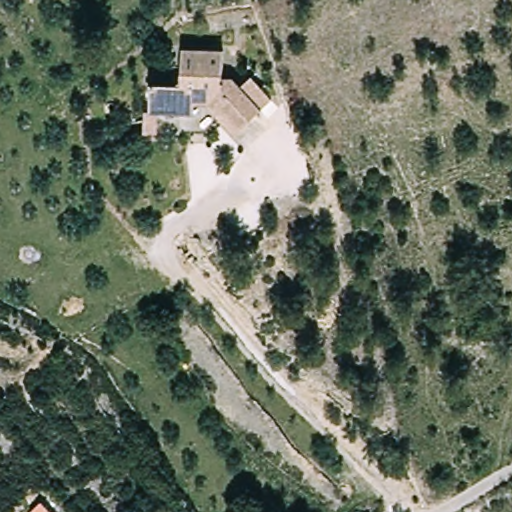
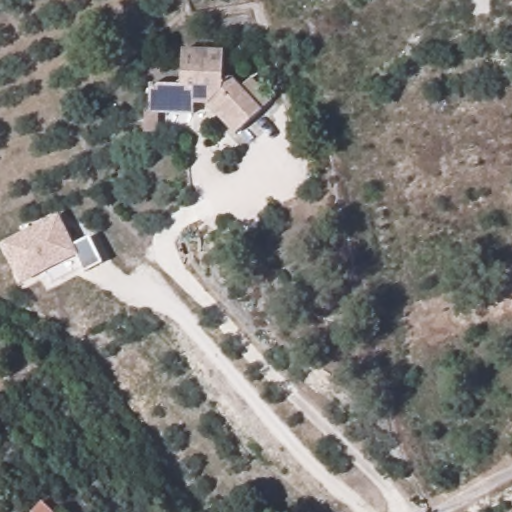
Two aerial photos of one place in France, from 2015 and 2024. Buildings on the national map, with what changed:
new [(512,8),(465,14),(464,0),(512,0),(512,8)]
unchanged [(233,82),(263,112),(237,137),(207,107),(195,107),(195,119),(151,118),(152,88),(184,89),(185,52),(225,53),(224,82),(233,82)]
new [(242,86),(250,78),(271,100),(263,107),(242,86)]
new [(59,215),(72,244),(88,236),(101,263),(84,272),(76,255),(20,282),(0,242),(59,215)]

